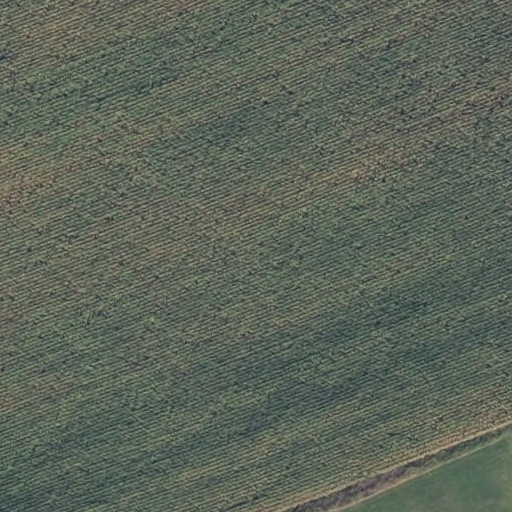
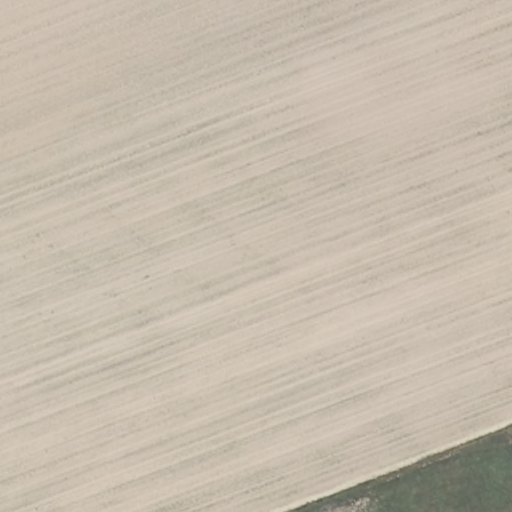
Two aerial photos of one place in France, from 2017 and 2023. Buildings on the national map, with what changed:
[]

